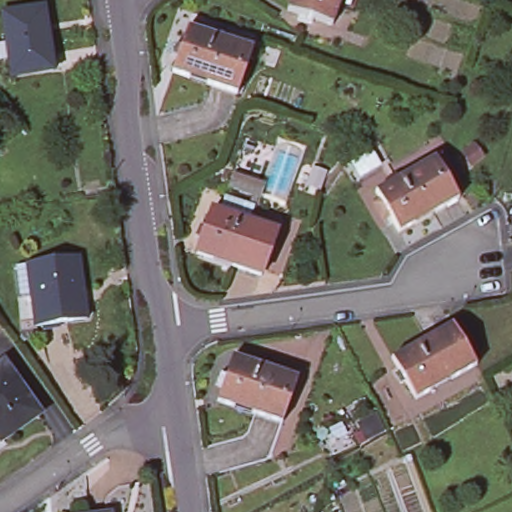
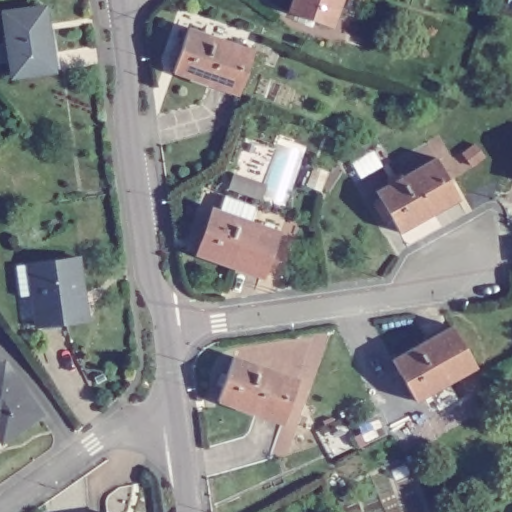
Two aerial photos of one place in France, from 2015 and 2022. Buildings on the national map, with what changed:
unchanged [(331,26),(286,11),(290,0),(341,0),(331,26)]
unchanged [(11,75),(3,12),(43,7),(53,69),(11,75)]
unchanged [(188,27),(253,49),(236,94),(172,72),(188,27)]
unchanged [(458,199),(398,232),(375,191),(435,158),(458,199)]
unchanged [(261,276),(196,253),(211,208),(261,226),(276,232),(273,244),(261,276)]
unchanged [(86,319),(35,325),(31,294),(20,296),(16,265),(78,257),(86,319)]
unchanged [(451,325),(474,365),(413,401),(389,361),(451,325)]
unchanged [(298,378),(281,423),(217,400),(233,356),(298,378)]
unchanged [(25,420),(6,434),(0,426),(0,364),(1,363),(15,384),(23,378),(38,400),(43,408),(25,420)]
unchanged [(115,512),(95,512),(114,509),(115,512)]

